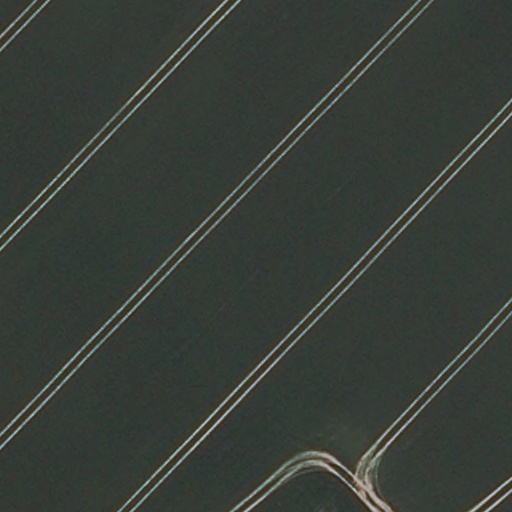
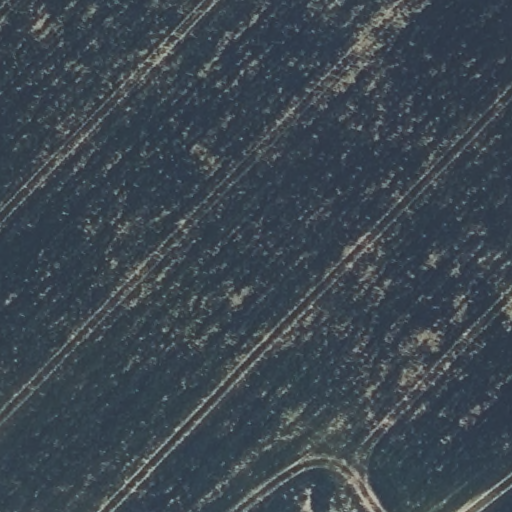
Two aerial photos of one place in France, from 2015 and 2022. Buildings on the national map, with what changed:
[]

